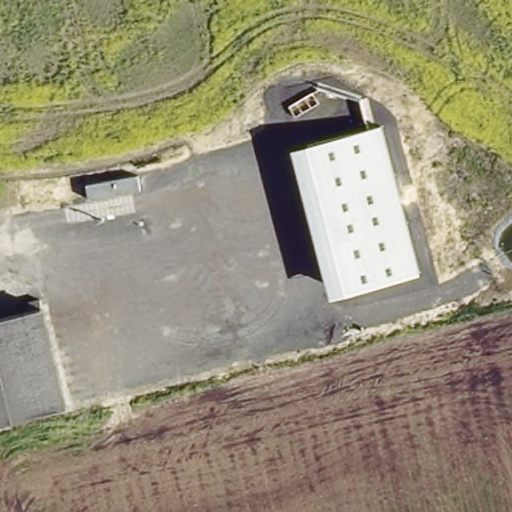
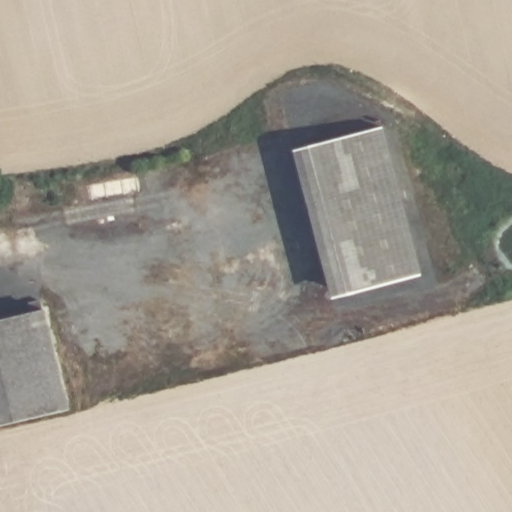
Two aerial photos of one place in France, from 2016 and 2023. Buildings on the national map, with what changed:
unchanged [(421,274),(331,297),(292,148),(381,125),(421,274)]
unchanged [(41,309),(64,406),(0,421),(0,320),(41,309)]

